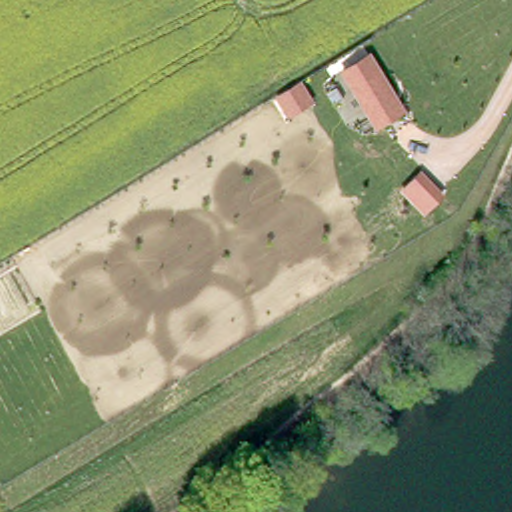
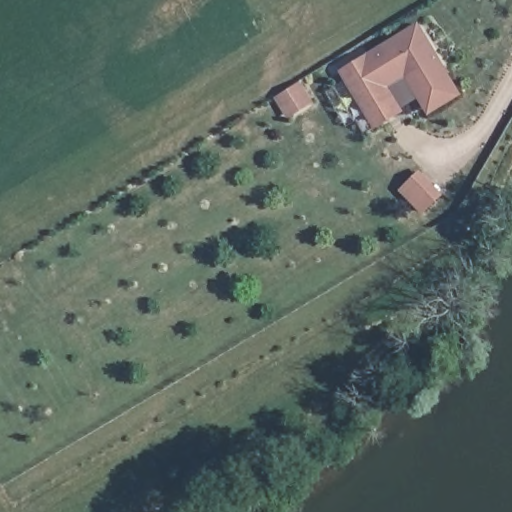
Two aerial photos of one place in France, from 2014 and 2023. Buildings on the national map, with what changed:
new [(371,51),(420,23),(462,94),(428,114),(418,97),(403,105),(371,51)]
unchanged [(407,111),(375,130),(340,70),(371,51),(407,111)]
new [(315,101),(288,118),(275,95),(301,79),(315,101)]
unchanged [(445,196),(422,216),(398,190),(422,169),(445,196)]

